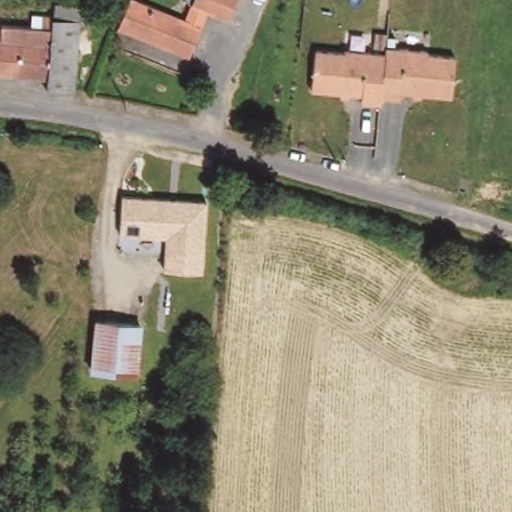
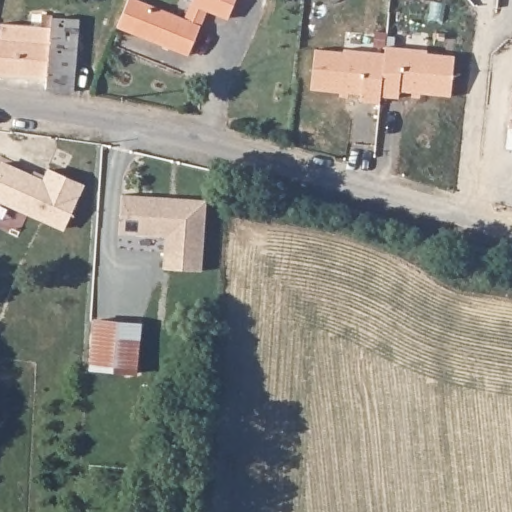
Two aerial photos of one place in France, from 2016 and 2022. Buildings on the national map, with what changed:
unchanged [(230,16),(209,8),(202,24),(201,27),(189,58),(120,29),(130,0),(140,0),(186,17),(192,0),(236,0),(230,16)]
unchanged [(0,38),(3,22),(33,27),(35,13),(54,15),(53,19),(44,81),(0,75),(0,38)]
unchanged [(56,19),(82,24),(71,94),(43,90),(44,81),(53,19),(56,19)]
unchanged [(403,86),(401,91),(385,90),(383,102),(359,100),(358,93),(314,87),(318,43),(388,49),(389,45),(457,54),(453,93),(403,86)]
new [(4,158),(46,175),(51,164),(85,178),(66,222),(0,194),(0,168),(4,158)]
unchanged [(201,271),(165,270),(167,236),(120,232),(122,194),(209,201),(201,271)]
unchanged [(137,374),(91,371),(96,320),(145,324),(137,374)]

